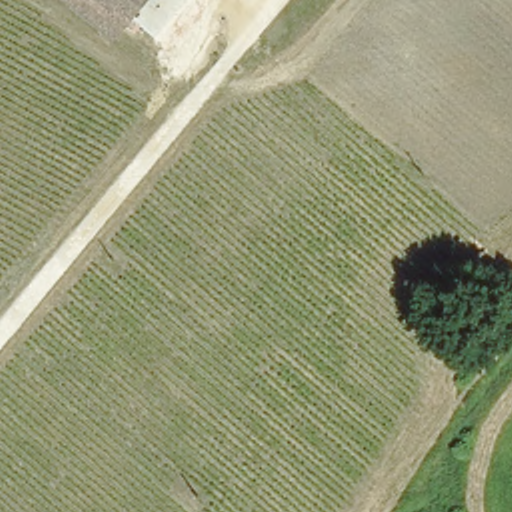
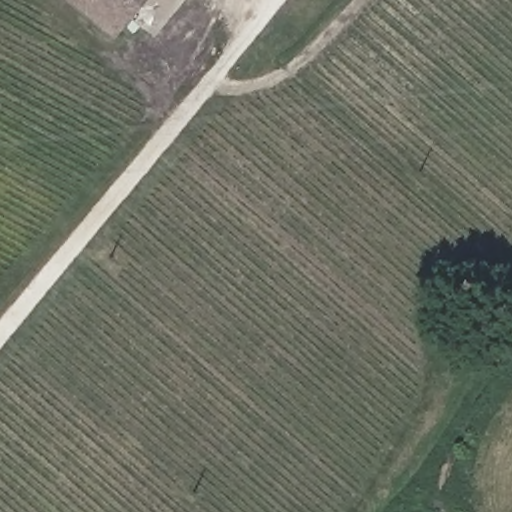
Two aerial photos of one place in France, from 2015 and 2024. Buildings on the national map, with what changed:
unchanged [(111,36),(107,41),(60,0),(142,0),(111,36)]

